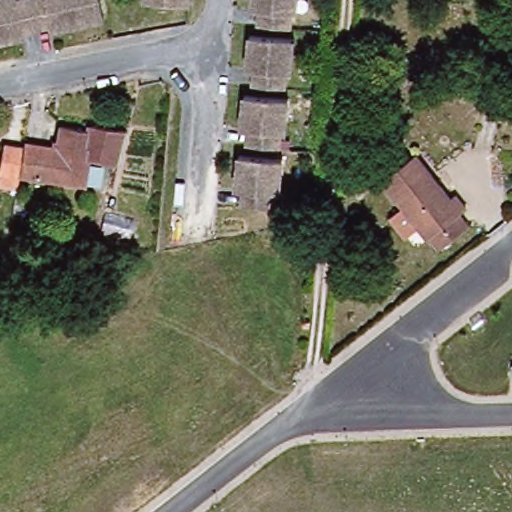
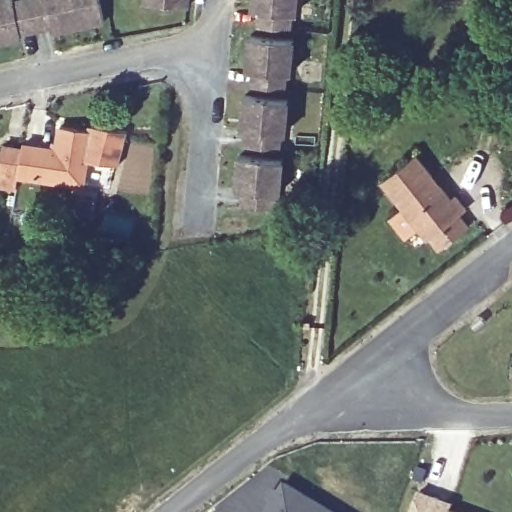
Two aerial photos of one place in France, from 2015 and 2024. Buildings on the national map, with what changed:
unchanged [(0,0),(8,0),(8,1),(16,0),(100,0),(104,21),(83,25),(51,30),(51,25),(21,31),(22,36),(0,41),(0,0)]
unchanged [(145,4),(145,0),(188,0),(187,9),(145,4)]
unchanged [(264,27),(266,11),(258,11),(259,0),(303,0),(302,16),(297,16),(296,31),(264,27)]
unchanged [(292,91),(260,87),(261,72),(254,71),(256,55),(257,37),(300,42),(297,76),(293,76),(292,91)]
unchanged [(287,150),(255,147),(257,131),(250,131),(251,115),(253,97),(296,102),(293,136),(289,135),(287,150)]
unchanged [(22,146),(22,141),(55,146),(59,127),(88,131),(89,126),(126,132),(117,166),(87,160),(82,185),(17,175),(15,191),(0,189),(0,156),(2,145),(22,146)]
unchanged [(469,211),(478,224),(449,248),(440,236),(437,239),(427,227),(415,237),(399,218),(412,208),(390,182),(422,154),(459,197),(463,194),(474,206),(469,211)]
unchanged [(277,210),(246,207),(247,191),(241,190),(242,175),(244,157),(287,161),(283,195),(280,195),(277,210)]
new [(338,512),(264,512),(285,480),(338,512)]
new [(422,491),(442,498),(456,503),(453,510),(457,512),(414,512),(422,491)]

